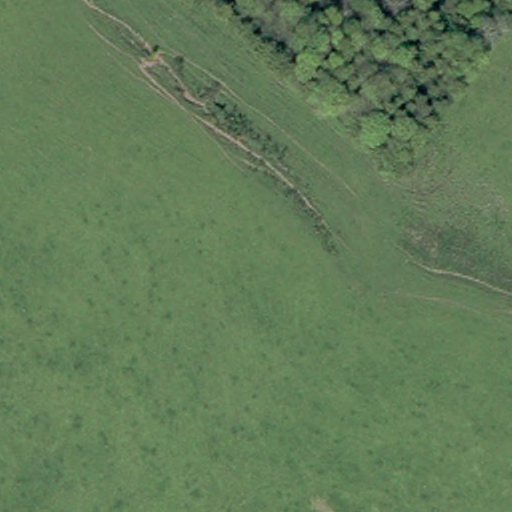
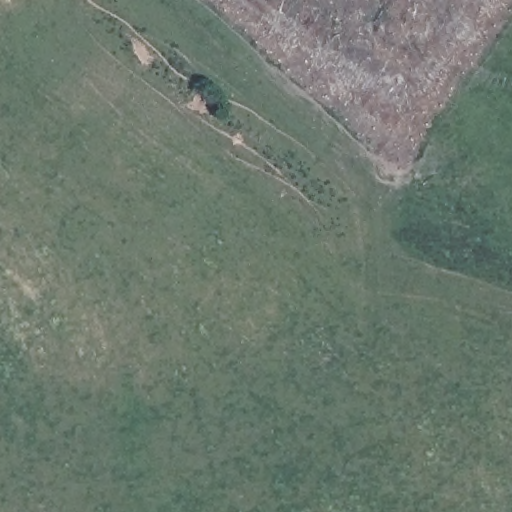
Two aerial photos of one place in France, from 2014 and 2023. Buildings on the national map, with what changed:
[]

